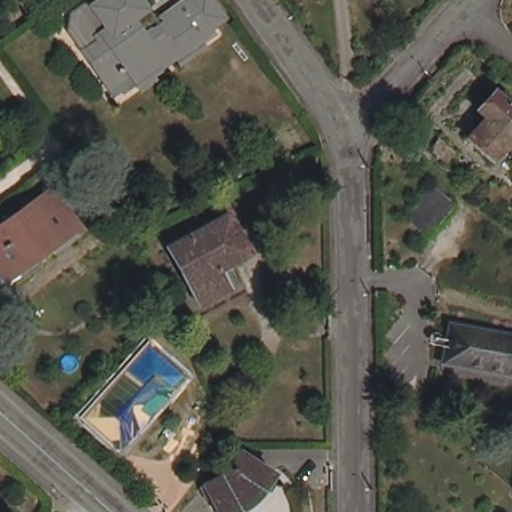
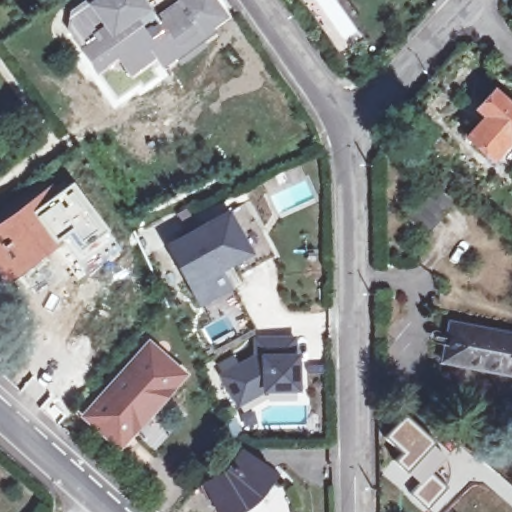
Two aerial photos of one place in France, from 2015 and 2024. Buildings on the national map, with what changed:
unchanged [(137,87),(135,86),(119,97),(72,37),(73,19),(89,7),(91,10),(105,0),(179,0),(146,25),(151,32),(161,24),(157,19),(170,9),(174,14),(192,0),(209,0),(224,20),(195,41),(200,47),(179,64),(176,60),(159,72),(153,66),(151,67),(149,69),(153,75),(137,87)]
unchanged [(468,141),(486,120),(477,111),(495,92),(512,107),(512,139),(492,163),(468,141)]
unchanged [(457,204),(430,237),(407,218),(435,186),(457,204)]
unchanged [(53,192),(79,226),(12,276),(0,259),(0,233),(53,192)]
unchanged [(217,269),(222,280),(195,295),(165,245),(225,213),(247,252),(217,269)]
unchanged [(446,327),(512,340),(512,377),(439,362),(446,327)]
new [(251,354),(251,337),(295,336),(295,353),(300,353),(300,392),(265,392),(237,409),(216,374),(251,354)]
unchanged [(154,347),(187,378),(124,445),(90,416),(154,347)]
unchanged [(223,508),(210,472),(225,464),(233,457),(246,442),(277,467),(262,487),(243,498),(223,508)]

